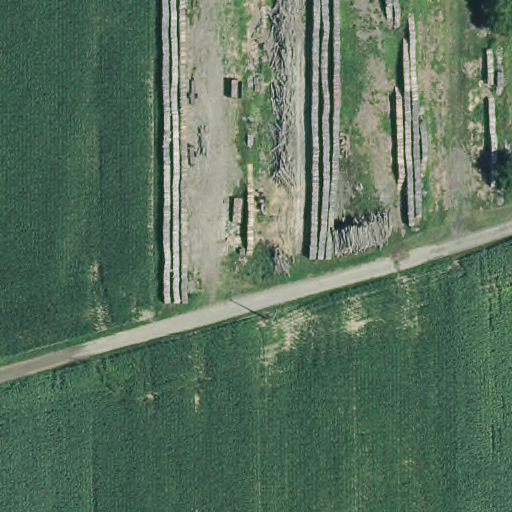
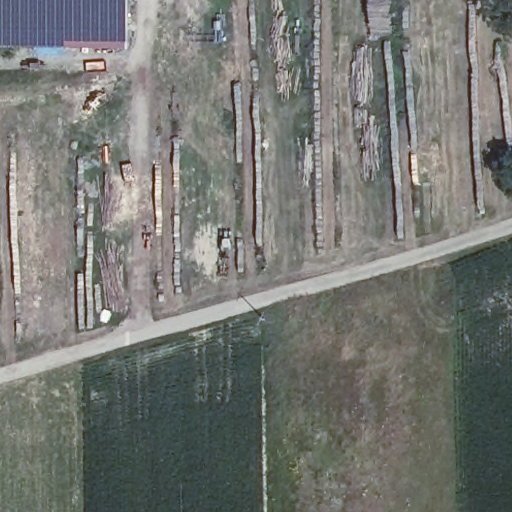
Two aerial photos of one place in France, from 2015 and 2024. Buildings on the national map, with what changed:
new [(130,51),(0,49),(0,0),(130,0),(130,51)]

